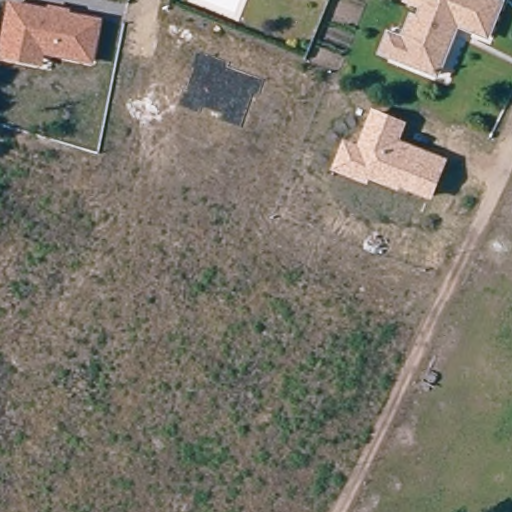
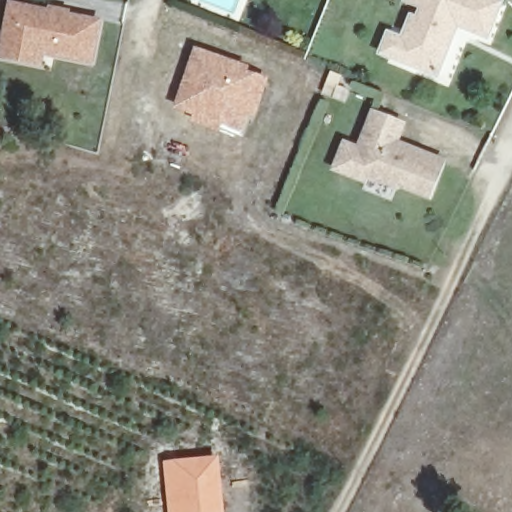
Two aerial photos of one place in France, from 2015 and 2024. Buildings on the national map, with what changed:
unchanged [(93,65),(44,55),(42,67),(0,60),(0,40),(8,0),(47,6),(49,4),(70,9),(72,12),(102,19),(93,65)]
unchanged [(410,43),(418,21),(424,23),(429,10),(413,4),(414,0),(495,0),(507,5),(494,39),(457,25),(453,35),(459,37),(444,78),(402,62),(388,57),(395,37),(410,43)]
new [(177,107),(183,91),(185,91),(192,70),(190,69),(196,52),(228,64),(226,67),(263,80),(257,96),(252,94),(239,129),(220,122),(218,129),(194,120),(196,114),(177,107)]
unchanged [(447,160),(432,200),(401,187),(400,191),(370,180),(367,185),(331,171),(343,139),(358,145),(371,107),(407,124),(401,140),(447,160)]
new [(217,455),(223,512),(166,512),(162,460),(217,455)]

